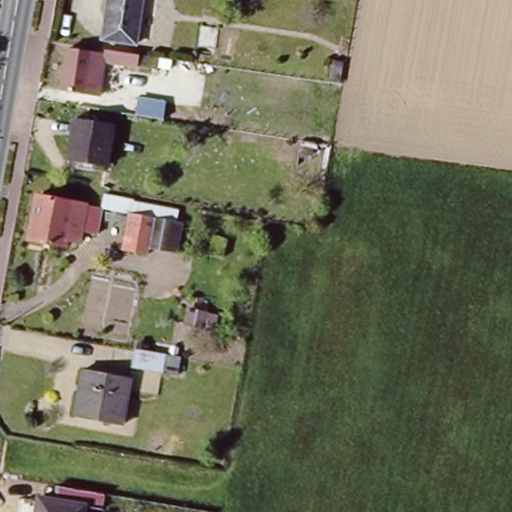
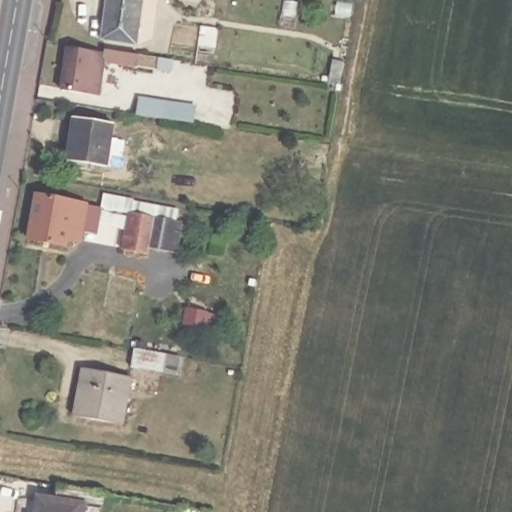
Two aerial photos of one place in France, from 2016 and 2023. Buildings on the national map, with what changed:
unchanged [(132,44),(101,39),(108,0),(140,0),(132,44)]
unchanged [(64,53),(100,59),(102,52),(137,58),(157,61),(155,75),(100,66),(96,94),(59,88),(64,53)]
unchanged [(133,114),(137,95),(163,99),(162,117),(133,114)]
unchanged [(110,124),(103,165),(67,158),(74,118),(110,124)]
unchanged [(63,237),(62,244),(27,239),(35,196),(82,204),(76,240),(63,237)]
unchanged [(157,249),(132,244),(138,209),(164,213),(191,218),(185,251),(158,246),(157,249)]
unchanged [(132,368),(135,346),(167,352),(163,372),(132,368)]
unchanged [(125,378),(115,425),(115,427),(72,419),(72,417),(81,371),(125,378)]
unchanged [(50,510),(53,487),(100,495),(96,512),(31,512),(32,507),(50,510)]

